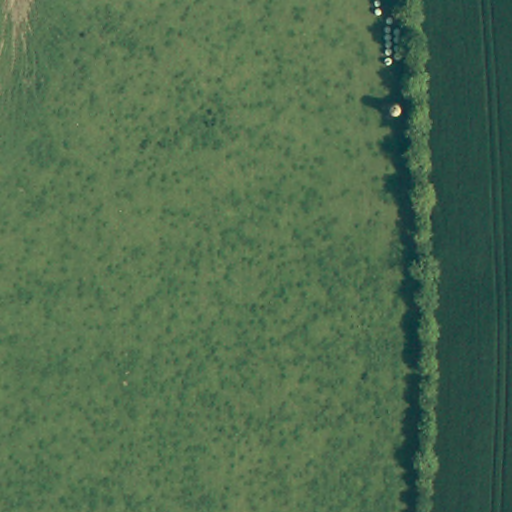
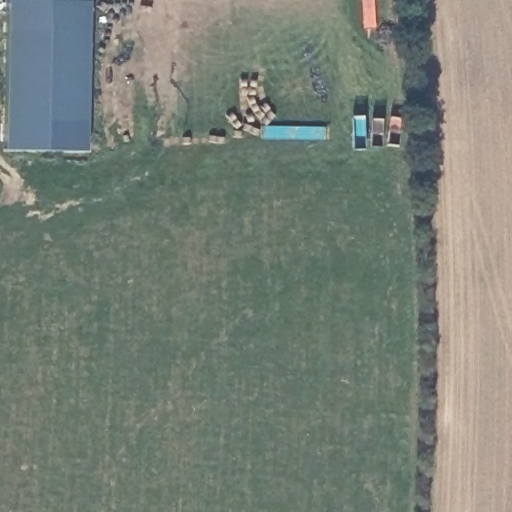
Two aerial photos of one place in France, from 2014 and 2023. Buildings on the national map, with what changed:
new [(4,150),(8,0),(29,0),(90,1),(87,152),(4,150)]

